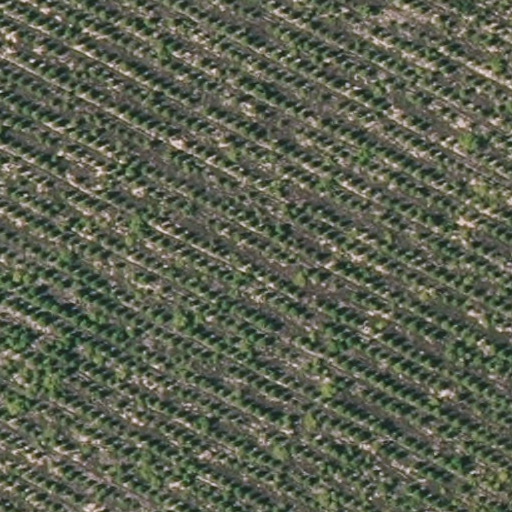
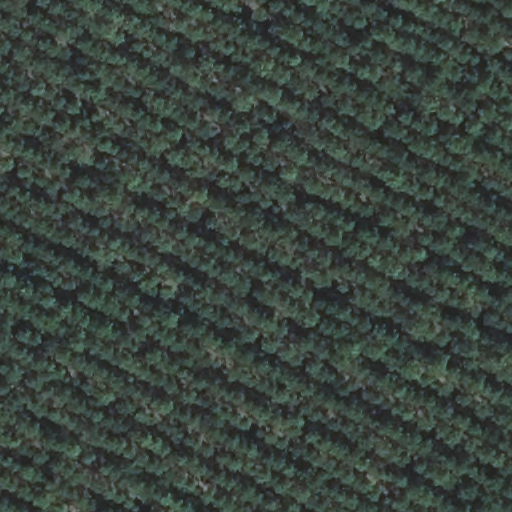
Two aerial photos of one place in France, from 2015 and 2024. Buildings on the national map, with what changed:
[]

